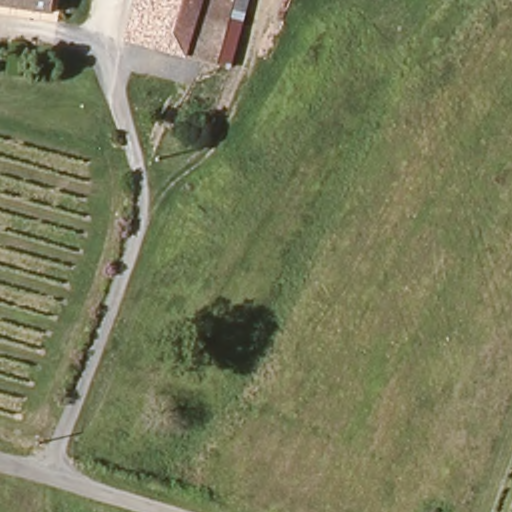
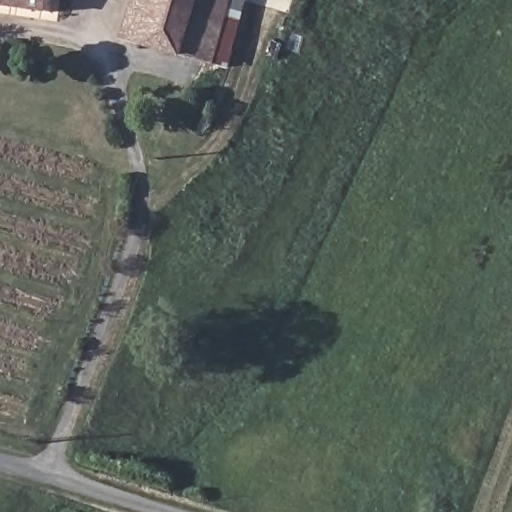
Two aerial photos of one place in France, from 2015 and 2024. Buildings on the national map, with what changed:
unchanged [(0,2),(0,0),(50,0),(47,11),(0,2)]
unchanged [(215,63),(214,65),(130,43),(140,0),(231,0),(226,16),(241,20),(230,67),(215,63)]

